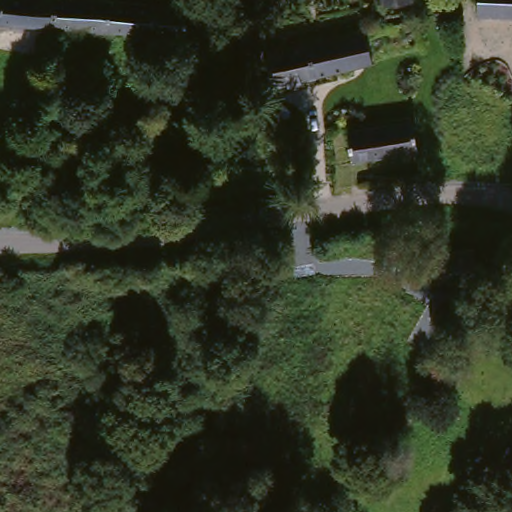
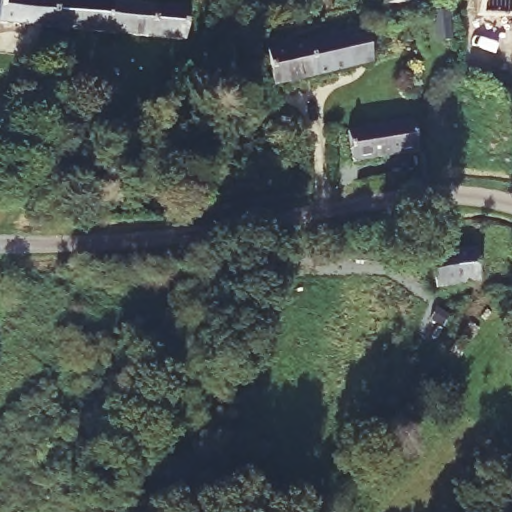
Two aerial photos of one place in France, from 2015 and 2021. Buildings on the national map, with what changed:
unchanged [(0,20),(0,0),(55,0),(54,24),(0,20)]
unchanged [(154,3),(156,3),(179,4),(186,4),(184,33),(154,31),(69,25),(68,41),(51,40),(54,24),(55,0),(119,0),(133,1),(154,3)]
unchanged [(381,0),(413,0),(414,0),(381,5),(381,0)]
unchanged [(468,11),(468,0),(512,0),(512,13),(468,11)]
unchanged [(304,42),(309,41),(355,30),(356,29),(358,29),(364,63),(312,76),(304,42)]
unchanged [(312,76),(269,84),(263,53),(264,53),(304,42),(312,76)]
unchanged [(351,164),(346,134),(382,129),(411,125),(412,131),(414,135),(419,134),(421,143),(414,145),(416,154),(387,159),(376,160),(351,164)]
unchanged [(471,245),(476,279),(434,284),(431,252),(471,245)]

